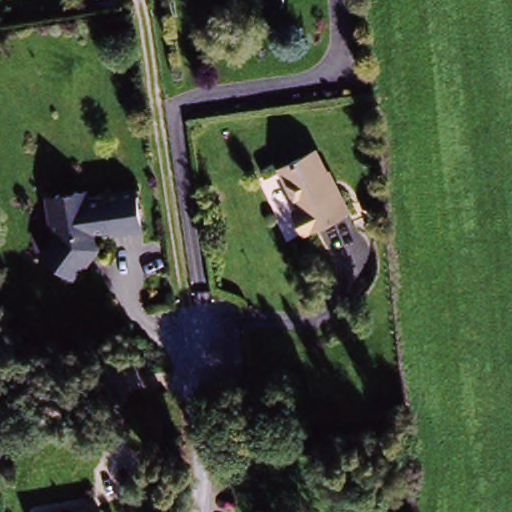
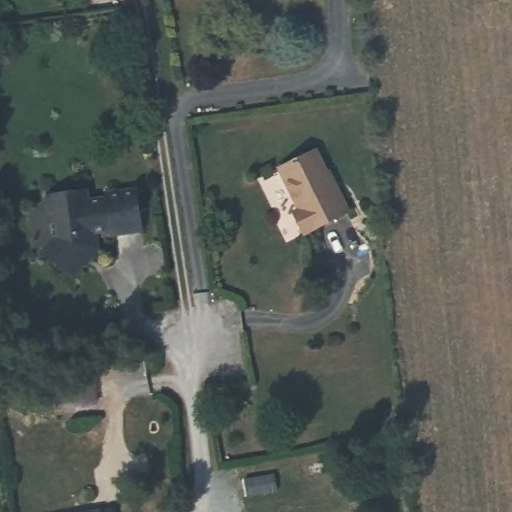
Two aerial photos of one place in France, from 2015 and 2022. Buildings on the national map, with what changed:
unchanged [(316,147),(335,188),(337,187),(347,209),(302,230),(292,208),(298,205),(280,164),(316,147)]
unchanged [(65,267),(63,257),(53,260),(42,252),(52,236),(46,205),(53,193),(74,189),(86,196),(103,192),(102,187),(132,181),(140,222),(112,229),(110,224),(95,227),(98,242),(77,275),(65,267)]
unchanged [(40,512),(95,503),(97,512),(40,512)]

